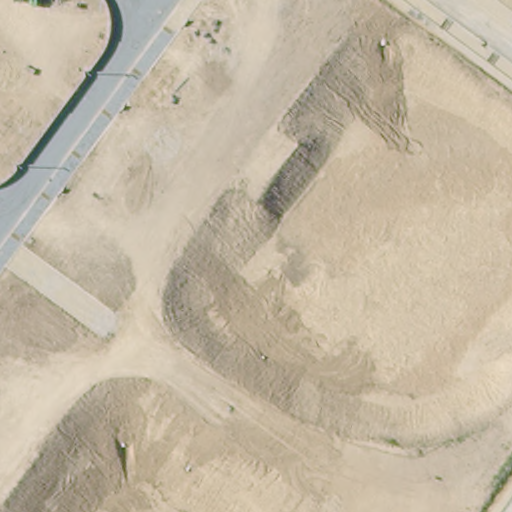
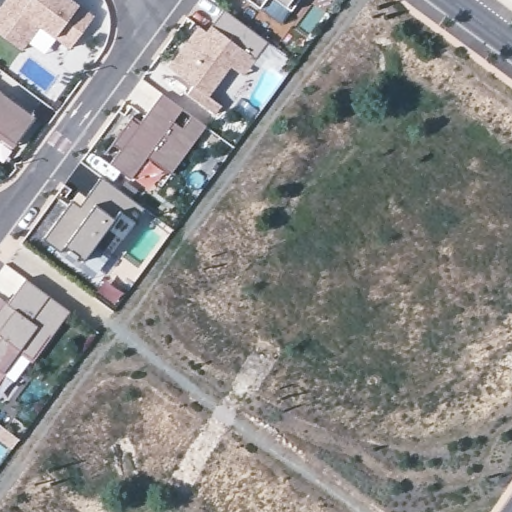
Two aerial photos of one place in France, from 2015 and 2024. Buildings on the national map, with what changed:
new [(7,0),(31,0),(71,0),(94,17),(71,49),(41,26),(23,51),(0,34),(0,10),(7,0)]
new [(260,10),(246,0),(266,0),(260,10)]
new [(290,10),(275,0),(297,0),(290,10)]
new [(199,28),(207,34),(225,10),(268,42),(244,76),(231,66),(208,96),(170,68),(199,28)]
unchanged [(4,94),(4,93),(37,117),(12,150),(1,141),(0,142),(0,91),(4,94)]
new [(162,94),(207,127),(171,175),(148,158),(132,180),(110,165),(162,94)]
new [(60,254),(42,240),(72,200),(80,206),(101,176),(144,209),(110,256),(95,279),(60,254)]
new [(8,306),(25,281),(69,312),(33,361),(22,354),(0,384),(0,301),(8,306)]

